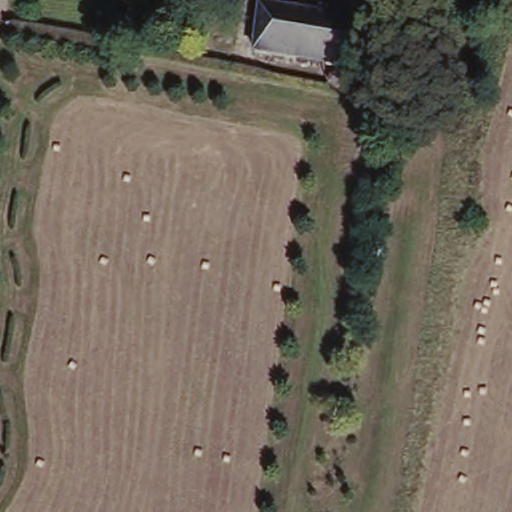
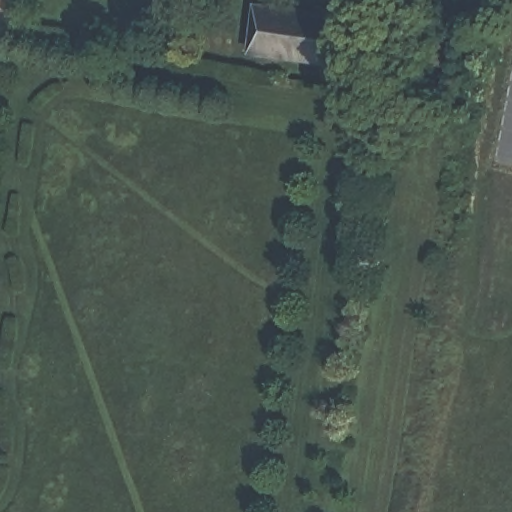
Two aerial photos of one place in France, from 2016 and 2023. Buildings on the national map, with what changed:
unchanged [(360,67),(257,51),(264,8),(365,23),(360,67)]
unchanged [(357,91),(334,89),(336,76),(358,80),(357,91)]

